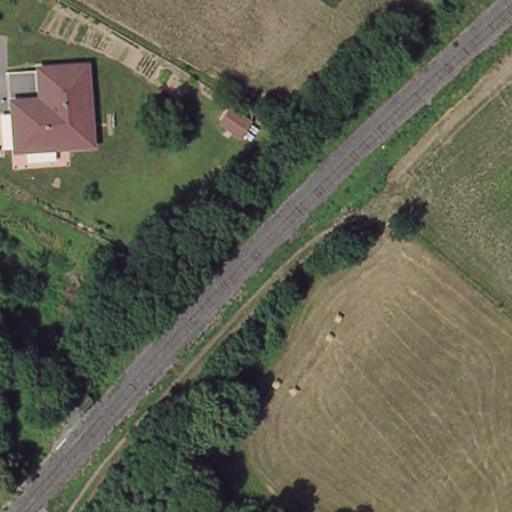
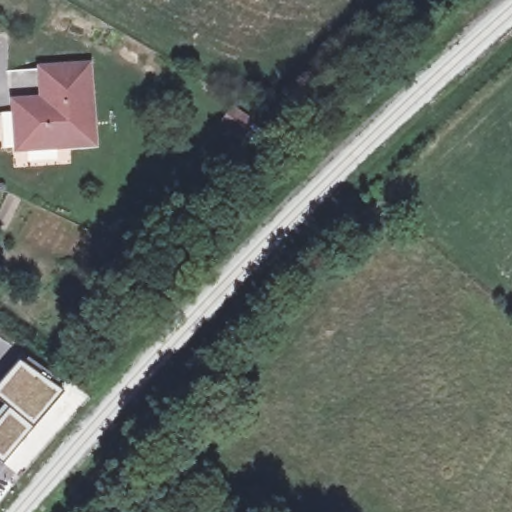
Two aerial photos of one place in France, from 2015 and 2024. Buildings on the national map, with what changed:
unchanged [(89,146),(14,147),(12,103),(40,101),(37,71),(87,68),(89,146)]
new [(10,407),(0,399),(0,382),(19,360),(63,391),(3,463),(0,460),(0,418),(10,407)]
demolished [(90,382),(105,397),(79,422),(62,407),(82,387),(90,382)]

